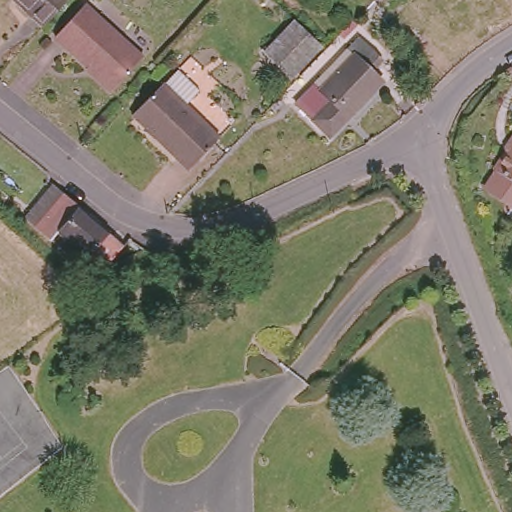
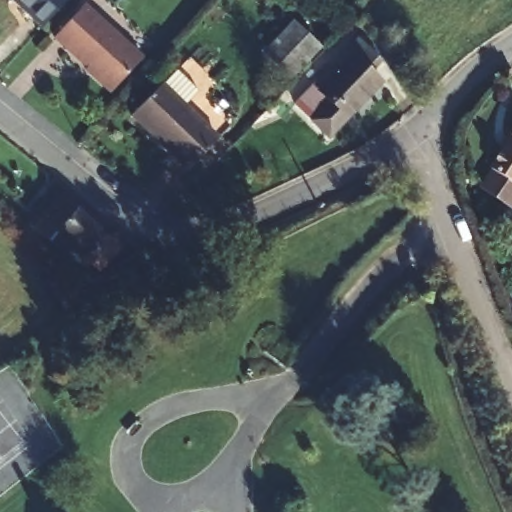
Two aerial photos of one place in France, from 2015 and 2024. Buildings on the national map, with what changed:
unchanged [(38,25),(13,0),(61,0),(38,25)]
unchanged [(145,55),(115,87),(57,34),(87,2),(145,55)]
unchanged [(315,51),(285,82),(260,59),(290,27),(315,51)]
unchanged [(372,73),(382,84),(330,138),(297,105),(315,86),(347,52),(359,39),(382,61),(372,73)]
unchanged [(192,94),(178,107),(212,138),(184,171),(127,119),(154,87),(155,87),(170,72),(192,94)]
unchanged [(512,122),(512,184),(485,167),(502,139),(500,137),(510,121),(512,122)]
unchanged [(106,228),(97,237),(87,230),(70,242),(25,204),(48,180),(106,228)]
unchanged [(143,244),(107,257),(105,242),(129,233),(143,244)]

